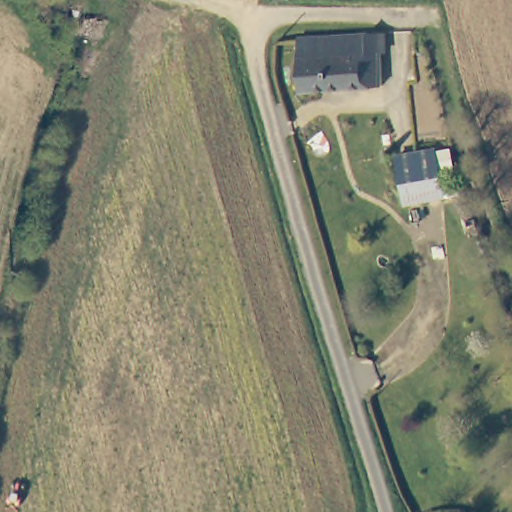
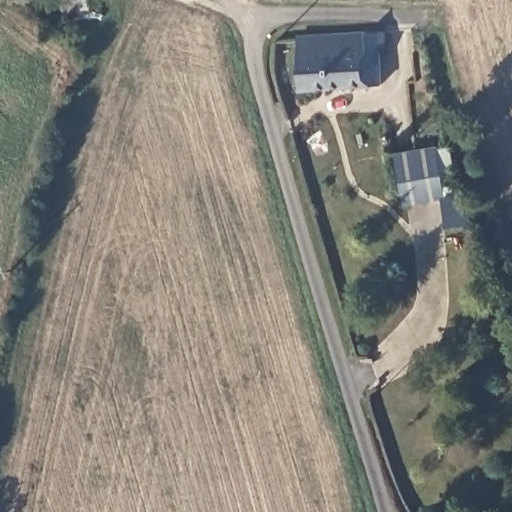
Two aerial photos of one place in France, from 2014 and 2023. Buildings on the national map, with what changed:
unchanged [(292,36),(363,33),(382,32),(383,35),(386,53),(377,53),(382,86),(295,90),(292,36)]
unchanged [(408,210),(396,158),(436,151),(448,200),(408,210)]

